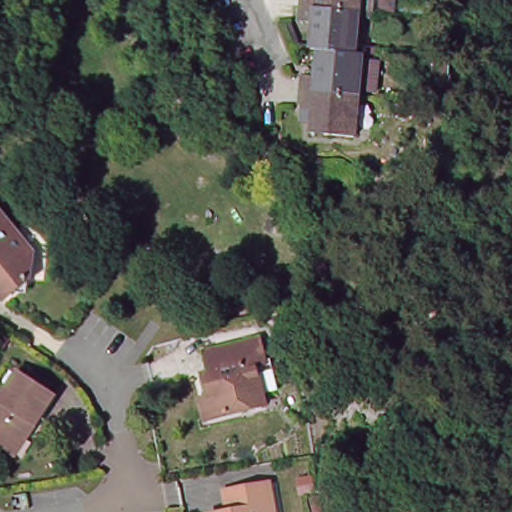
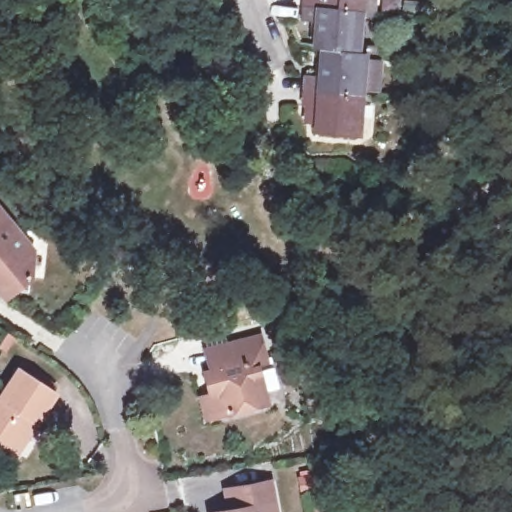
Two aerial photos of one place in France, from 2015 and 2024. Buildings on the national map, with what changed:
unchanged [(302,25),(304,0),(363,0),(358,57),(365,58),(359,140),(315,137),(317,110),(302,109),(305,79),(320,80),(322,54),(315,54),(317,26),(302,25)]
unchanged [(34,274),(12,291),(0,276),(1,270),(0,269),(0,198),(14,215),(37,245),(34,274)]
unchanged [(207,403),(216,401),(212,381),(217,380),(212,360),(265,346),(270,366),(276,364),(284,395),(270,399),(272,411),(229,423),(213,427),(207,403)]
unchanged [(15,450),(0,440),(0,394),(5,396),(24,368),(62,394),(42,424),(22,454),(15,450)]
unchanged [(230,510),(227,488),(234,487),(272,480),(278,512),(215,512),(230,510)]

